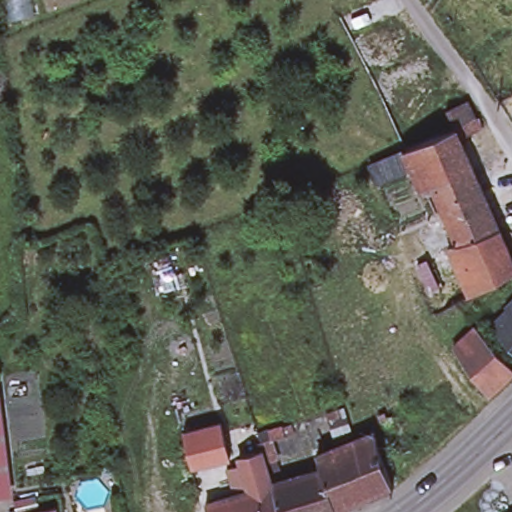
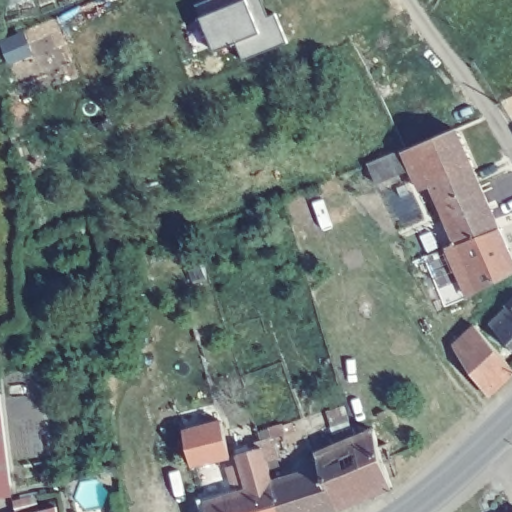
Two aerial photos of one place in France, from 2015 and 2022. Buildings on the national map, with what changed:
new [(199,0),(249,0),(256,17),(275,9),(287,39),(243,57),(235,40),(215,49),(195,1),(199,0)]
unchanged [(405,152),(455,131),(471,170),(431,189),(422,192),(412,171),(378,186),(368,169),(405,152)]
unchanged [(456,246),(431,189),(471,170),(497,228),(456,246)]
unchanged [(447,250),(456,246),(497,228),(512,263),(512,275),(468,298),(447,250)]
unchanged [(505,312),(501,307),(512,297),(512,348),(491,325),(505,312)]
unchanged [(482,395),(447,350),(468,328),(506,371),(482,395)]
unchanged [(0,493),(0,402),(3,401),(15,490),(0,493)]
unchanged [(316,455),(337,447),(326,413),(342,406),(355,440),(373,433),(392,486),(373,495),(337,512),(336,512),(320,469),(316,455)]
unchanged [(221,419),(228,454),(190,463),(183,428),(221,419)]
unchanged [(233,485),(227,470),(245,465),(241,455),(248,453),(246,447),(255,445),(260,443),(257,434),(283,426),(286,436),(271,440),(277,459),(265,462),(272,485),(280,512),(206,512),(204,504),(235,496),(233,485)]
unchanged [(320,469),(336,512),(280,512),(272,485),(320,469)]
unchanged [(59,512),(36,512),(58,506),(59,512)]

